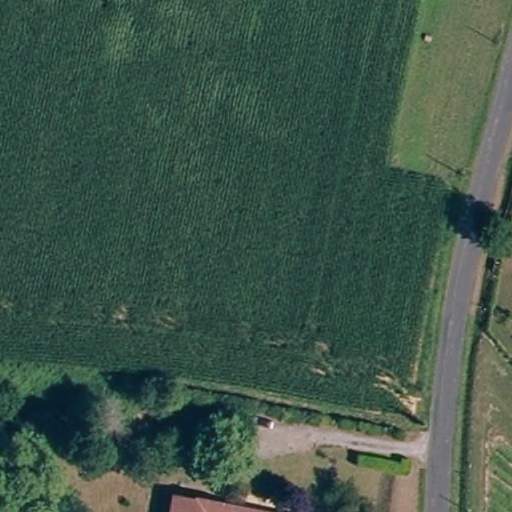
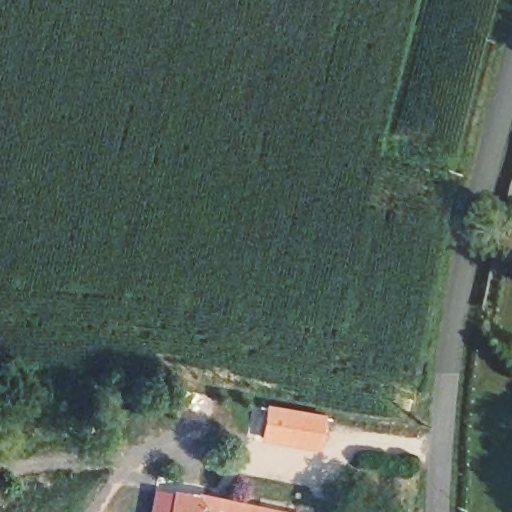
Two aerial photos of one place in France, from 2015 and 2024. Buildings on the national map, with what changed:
new [(326,415),(320,451),(260,440),(266,405),(326,415)]
unchanged [(171,512),(175,496),(211,503),(260,512),(171,512)]

